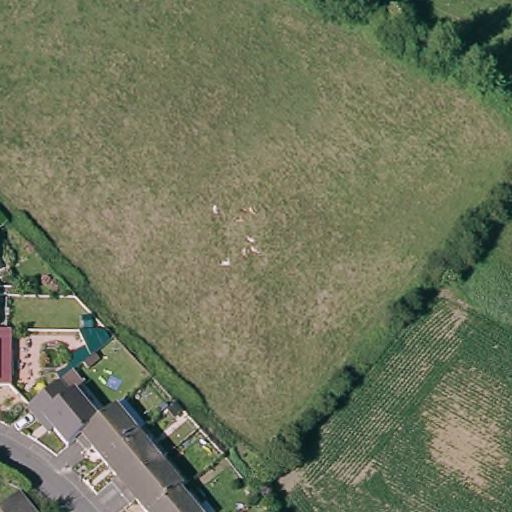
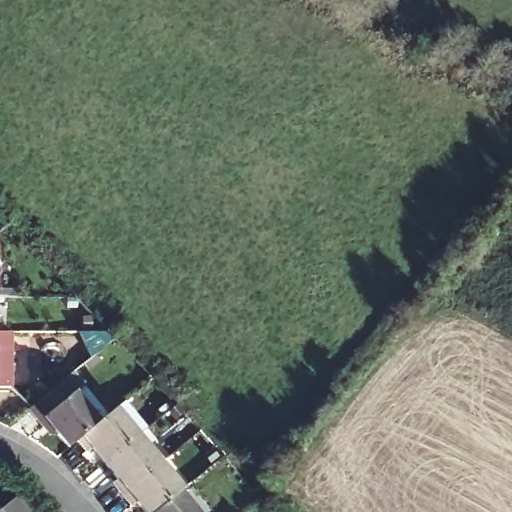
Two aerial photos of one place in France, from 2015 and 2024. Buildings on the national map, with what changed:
unchanged [(0,330),(1,330),(0,359),(0,330)]
unchanged [(65,440),(56,428),(51,431),(25,399),(40,387),(56,374),(83,407),(87,403),(96,414),(75,432),(65,440)]
unchanged [(102,455),(91,442),(86,446),(75,432),(96,414),(122,393),(145,420),(135,428),(102,455)]
unchanged [(111,475),(116,471),(102,455),(135,428),(157,455),(120,486),(111,475)]
unchanged [(157,455),(179,481),(176,484),(161,497),(146,508),(136,495),(130,499),(120,486),(157,455)]
unchanged [(161,497),(176,484),(199,512),(149,512),(146,508),(161,497)]
unchanged [(23,512),(0,512),(0,504),(10,495),(23,512)]

